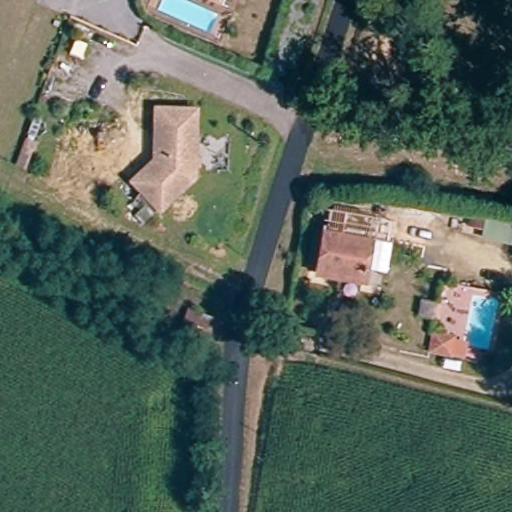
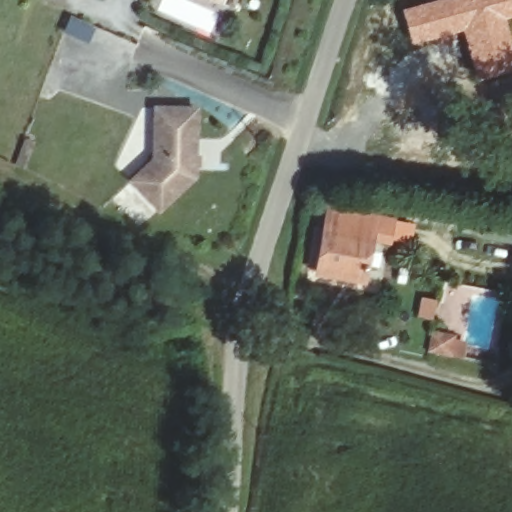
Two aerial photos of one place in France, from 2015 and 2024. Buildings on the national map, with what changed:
new [(512,17),(505,19),(512,44),(512,70),(474,81),(461,30),(411,46),(400,9),(433,0),(512,0),(512,17)]
unchanged [(190,110),(188,177),(152,210),(125,180),(150,158),(151,107),(190,110)]
unchanged [(494,235),(465,229),(466,221),(451,219),(454,205),(468,210),(498,214),(494,235)]
unchanged [(319,267),(326,226),(330,209),(372,216),(368,234),(361,275),(319,267)]

